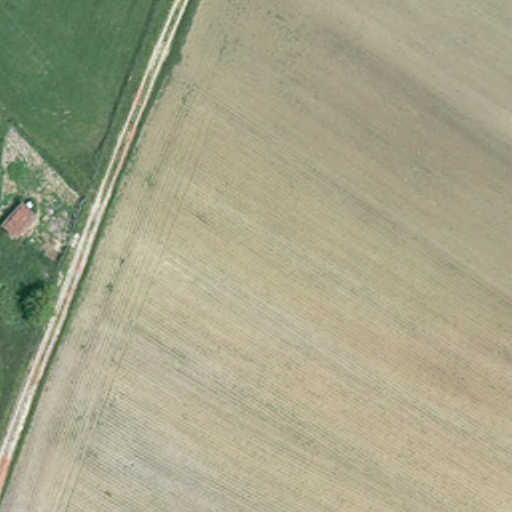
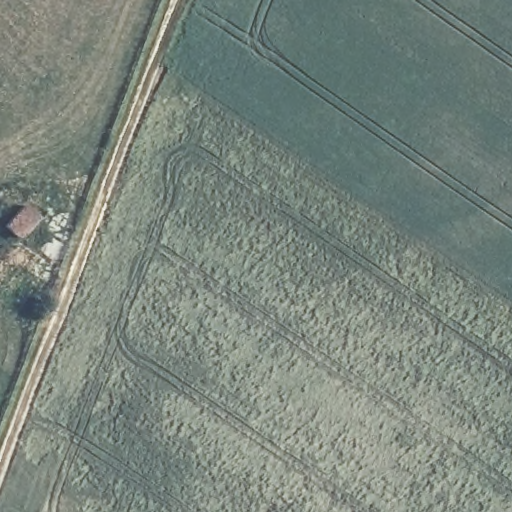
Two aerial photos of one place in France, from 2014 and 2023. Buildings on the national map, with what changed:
unchanged [(48,213),(18,244),(0,224),(32,195),(48,213)]

